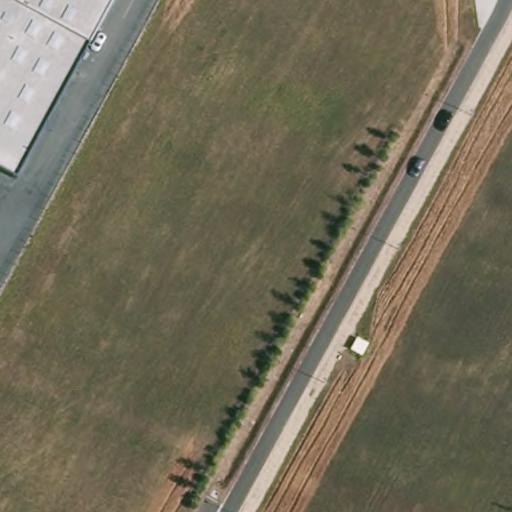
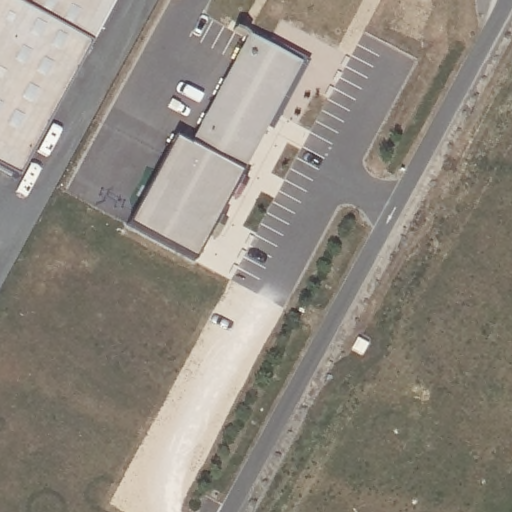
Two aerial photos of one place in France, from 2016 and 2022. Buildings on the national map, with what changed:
unchanged [(0,0),(112,0),(87,44),(16,179),(0,170),(0,0)]
new [(129,225),(175,137),(191,146),(249,36),(299,63),(241,173),(195,261),(129,225)]

